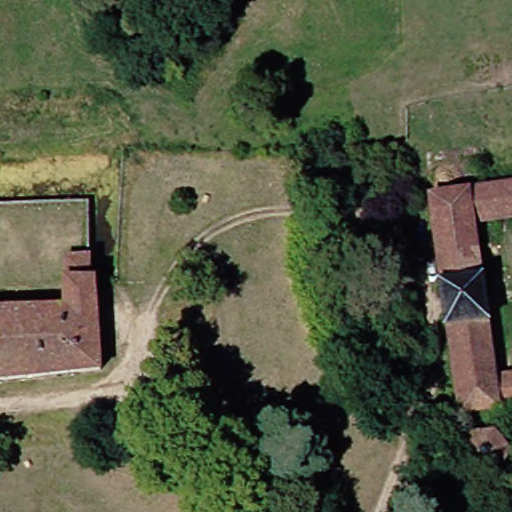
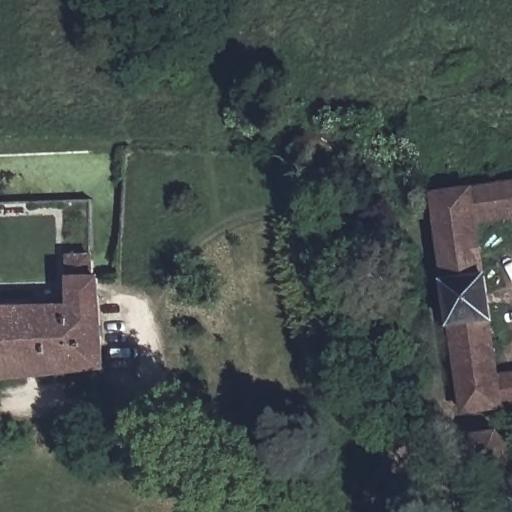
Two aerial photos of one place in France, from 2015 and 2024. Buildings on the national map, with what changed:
unchanged [(488,278),(492,277),(498,323),(495,324),(503,378),(508,410),(467,414),(456,331),(453,332),(446,279),(452,278),(439,195),(445,194),(512,184),(512,219),(480,224),(488,278)]
unchanged [(96,283),(101,374),(0,383),(0,310),(69,307),(67,259),(90,258),(91,282),(96,283)]
unchanged [(503,378),(512,377),(512,410),(511,410),(508,410),(503,378)]
unchanged [(491,473),(476,459),(483,436),(503,433),(512,443),(512,470),(491,473)]

